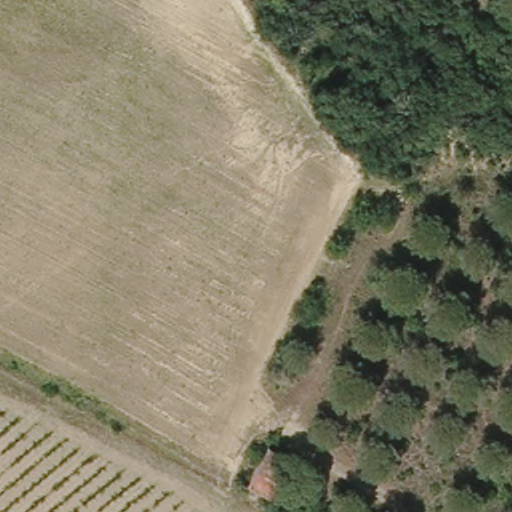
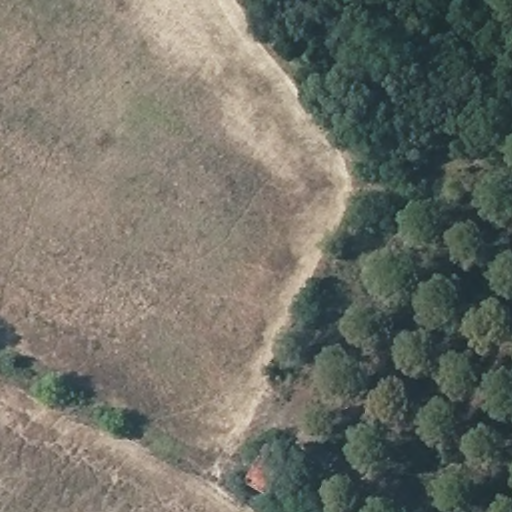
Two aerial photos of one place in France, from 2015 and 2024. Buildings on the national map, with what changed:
unchanged [(292,460),(270,501),(250,489),(249,488),(270,449),(292,460)]

